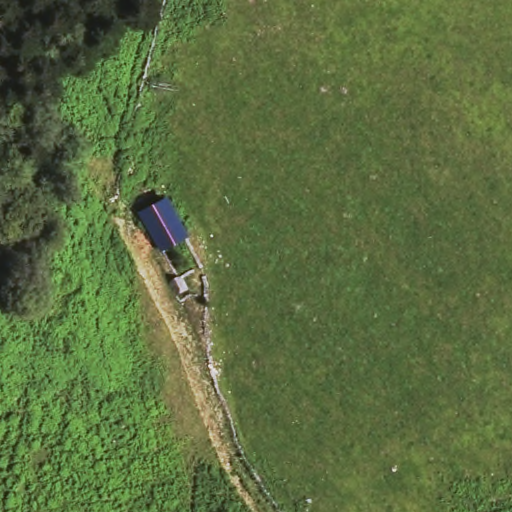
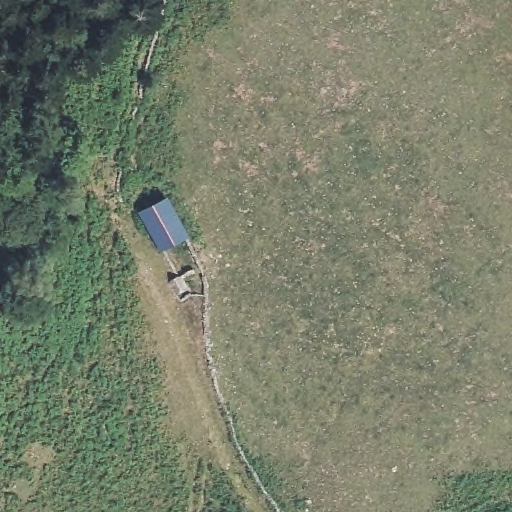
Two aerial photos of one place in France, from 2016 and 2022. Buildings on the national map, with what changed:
unchanged [(178,215),(187,231),(161,247),(141,213),(167,197),(178,215)]

